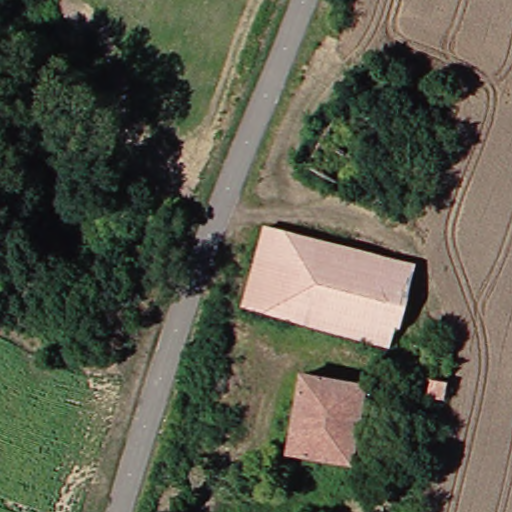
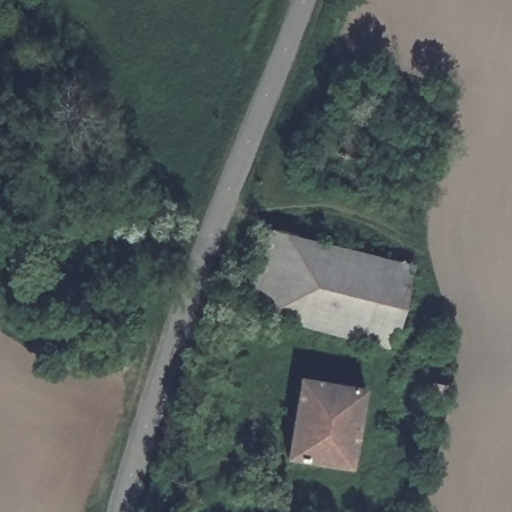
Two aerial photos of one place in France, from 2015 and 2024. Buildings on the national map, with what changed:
unchanged [(432,93),(428,117),(406,114),(407,99),(382,94),(386,85),(432,93)]
unchanged [(377,318),(399,324),(393,348),(243,304),(268,224),(391,260),(377,318)]
unchanged [(415,269),(399,324),(377,318),(391,260),(415,269)]
unchanged [(428,375),(405,366),(410,337),(447,343),(440,390),(426,388),(428,375)]
unchanged [(367,393),(356,469),(298,460),(308,383),(367,393)]

